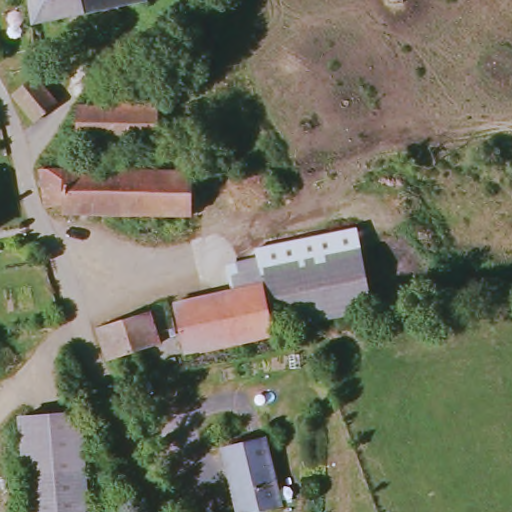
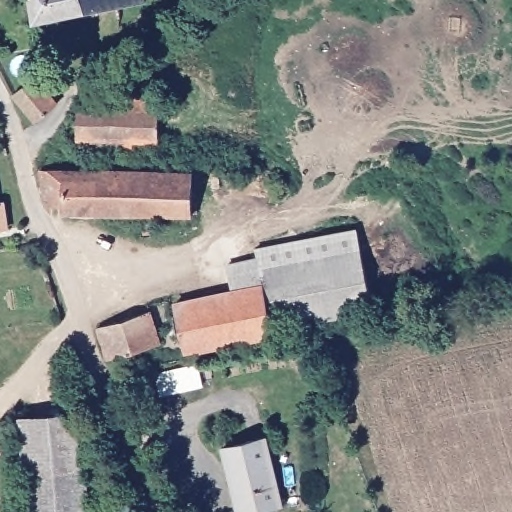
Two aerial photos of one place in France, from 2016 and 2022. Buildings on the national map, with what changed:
unchanged [(149,0),(150,1),(35,25),(31,0),(149,0)]
unchanged [(35,76),(57,104),(35,122),(12,95),(35,76)]
unchanged [(77,140),(77,105),(107,105),(107,89),(158,90),(158,143),(131,142),(130,153),(77,151),(77,140)]
unchanged [(190,164),(221,164),(221,170),(226,170),(226,175),(221,175),(221,189),(193,189),(192,215),(62,213),(62,205),(45,208),(40,170),(190,173),(190,164)]
unchanged [(175,309),(232,297),(227,271),(257,264),(260,274),(361,254),(373,313),(272,334),(273,339),(186,358),(175,309)]
unchanged [(150,312),(160,343),(137,351),(138,358),(136,364),(131,367),(127,366),(123,362),(120,357),(108,359),(97,328),(150,312)]
unchanged [(20,418),(81,413),(90,512),(28,512),(20,418)]
unchanged [(233,492),(222,449),(265,438),(282,504),(249,512),(238,512),(233,492)]

